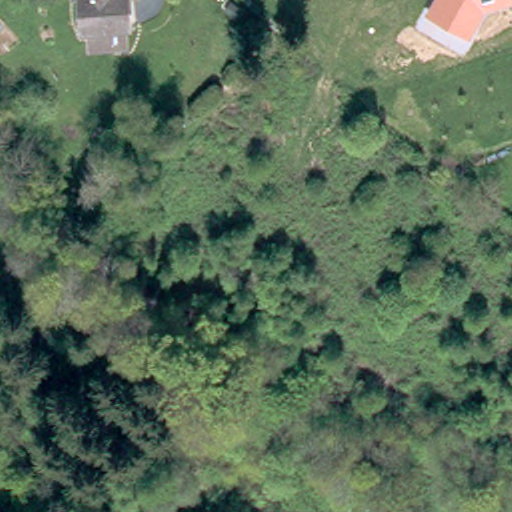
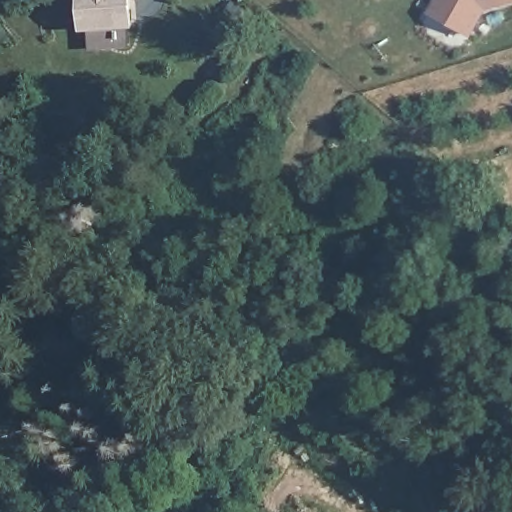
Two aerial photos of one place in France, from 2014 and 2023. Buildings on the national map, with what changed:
unchanged [(97,30),(90,0),(139,0),(144,20),(140,21),(145,41),(112,49),(107,29),(97,30)]
unchanged [(472,39),(427,11),(433,0),(512,0),(512,3),(487,9),(472,39)]

